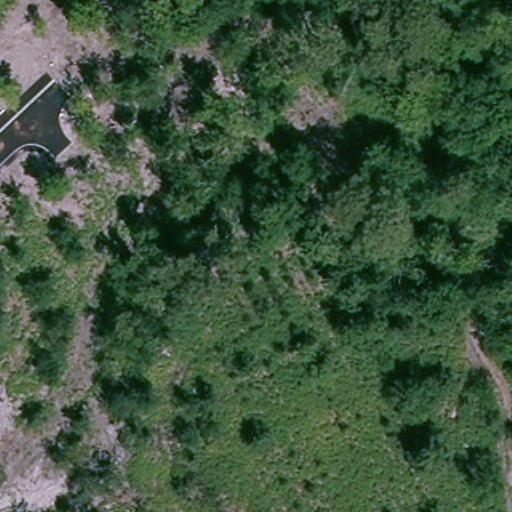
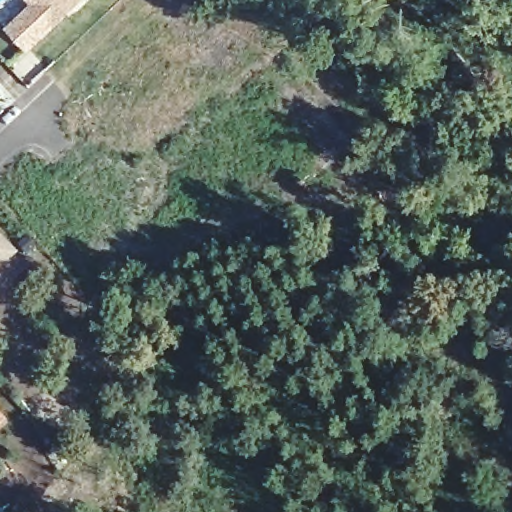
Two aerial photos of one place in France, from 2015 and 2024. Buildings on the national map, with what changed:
new [(5,29),(31,4),(28,0),(85,0),(29,54),(5,29)]
new [(8,259),(0,267),(0,249),(8,259)]

